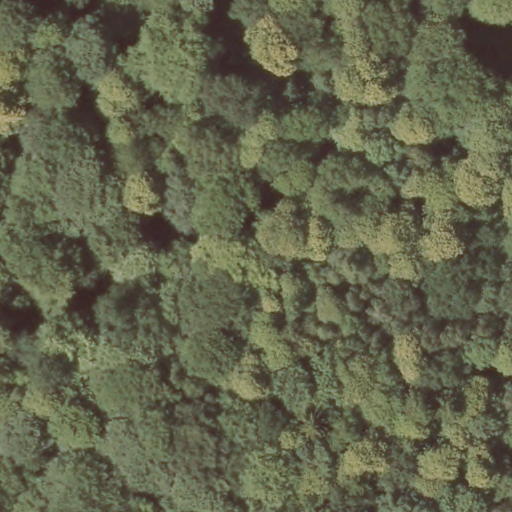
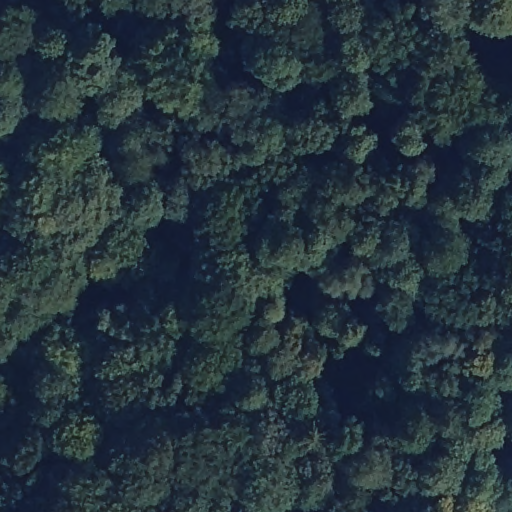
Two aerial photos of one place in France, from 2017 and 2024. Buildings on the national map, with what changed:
unchanged [(117,512),(83,512),(95,497),(117,512)]

